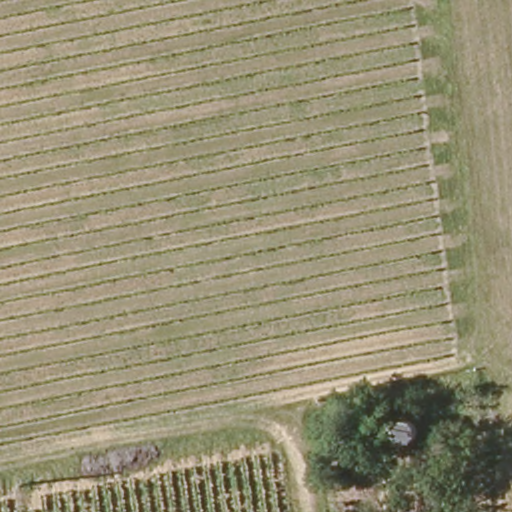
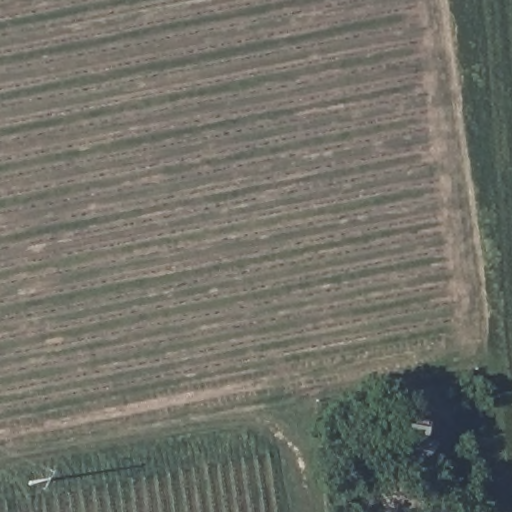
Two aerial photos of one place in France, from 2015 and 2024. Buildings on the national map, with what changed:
[]

